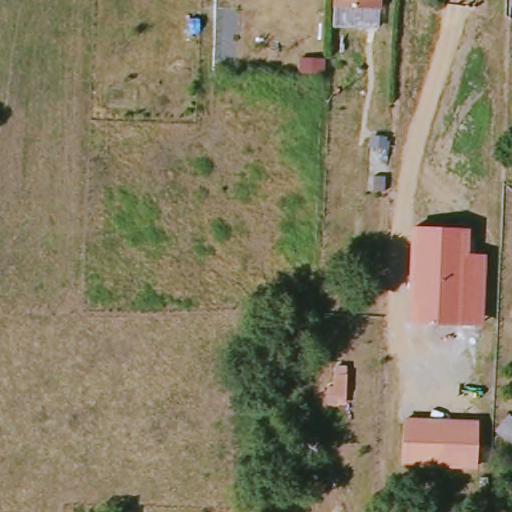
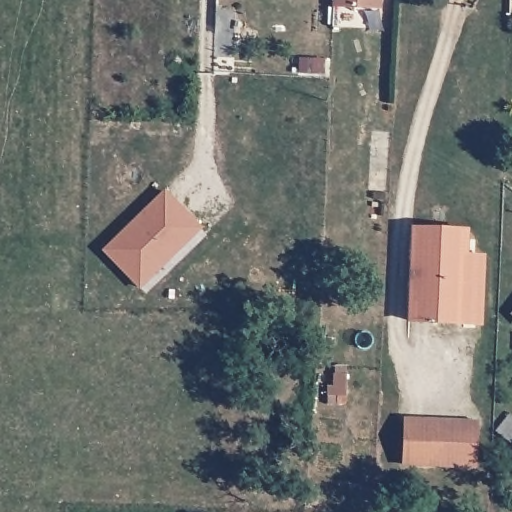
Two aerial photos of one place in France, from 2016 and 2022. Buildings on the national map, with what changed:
unchanged [(381,10),(331,7),(332,0),(381,0),(381,10)]
new [(139,286),(104,249),(164,189),(201,227),(139,286)]
unchanged [(469,230),(468,254),(484,255),(482,327),(407,323),(410,227),(469,230)]
unchanged [(477,470),(401,468),(403,419),(478,423),(477,470)]

